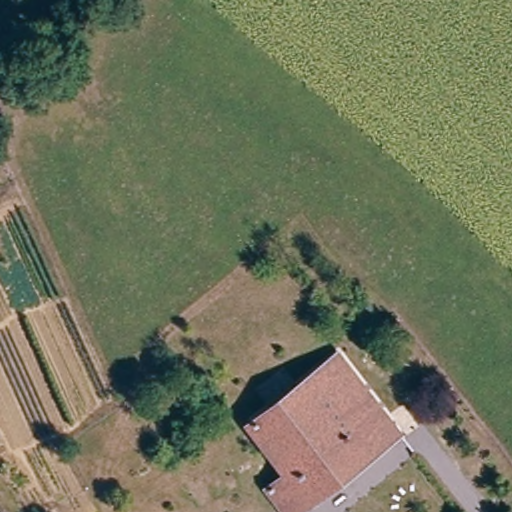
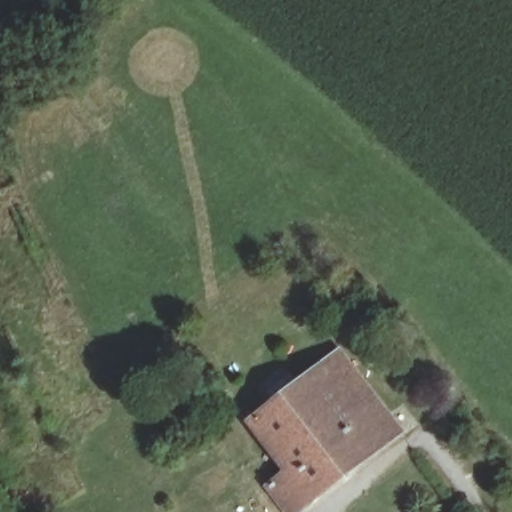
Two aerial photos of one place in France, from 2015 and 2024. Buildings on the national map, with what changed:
unchanged [(406,434),(307,512),(301,512),(283,486),(298,472),(267,423),(352,354),(406,434)]

